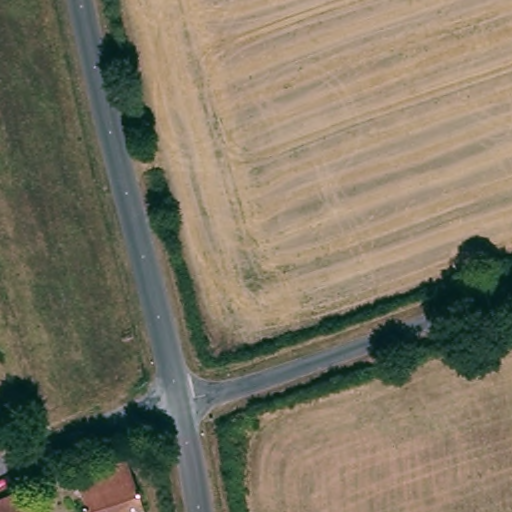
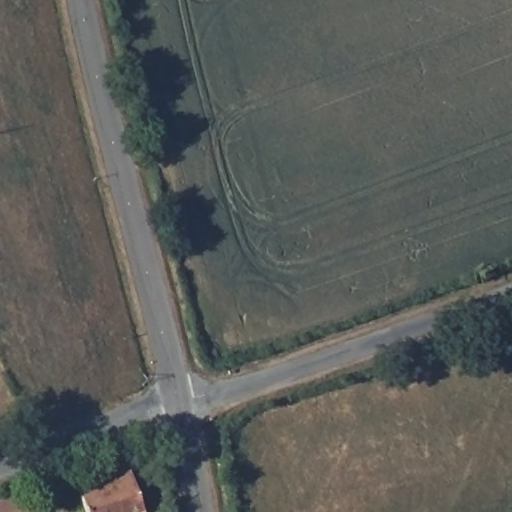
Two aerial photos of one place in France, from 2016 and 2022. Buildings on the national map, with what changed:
unchanged [(86,512),(74,477),(127,460),(144,512),(86,512)]
unchanged [(0,512),(0,495),(22,486),(33,512),(0,512)]

